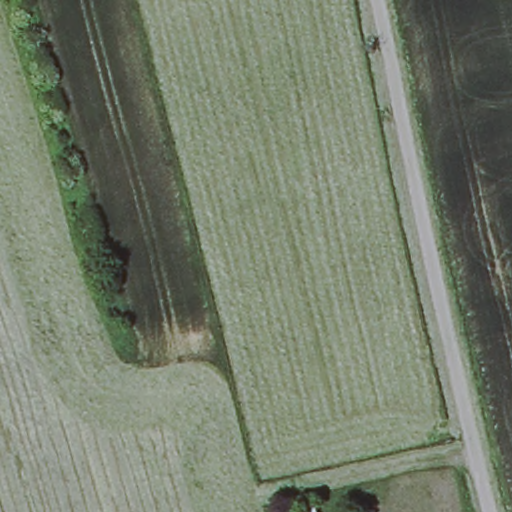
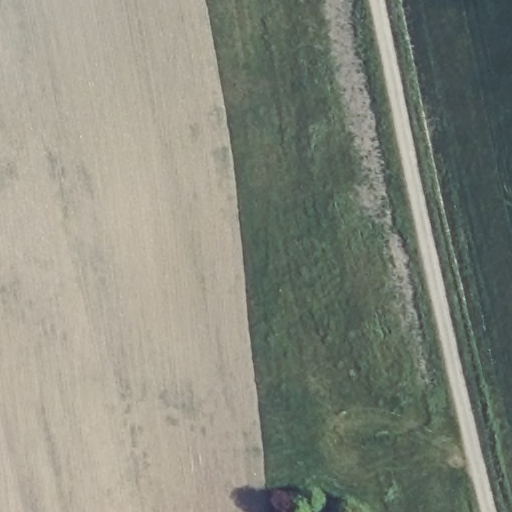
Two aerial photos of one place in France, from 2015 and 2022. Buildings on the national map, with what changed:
unchanged [(286,510),(295,508),(294,500),(310,498),(313,512),(287,512),(286,510)]

